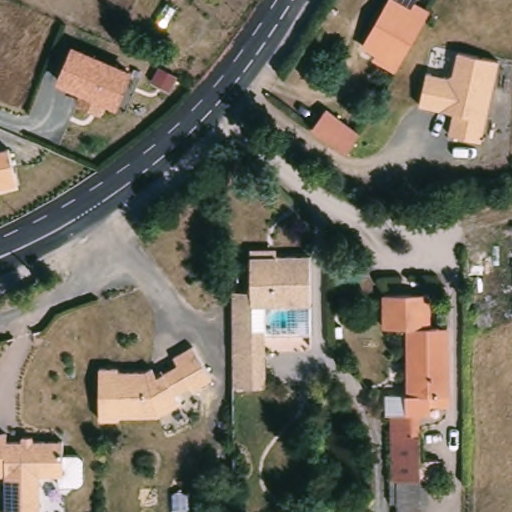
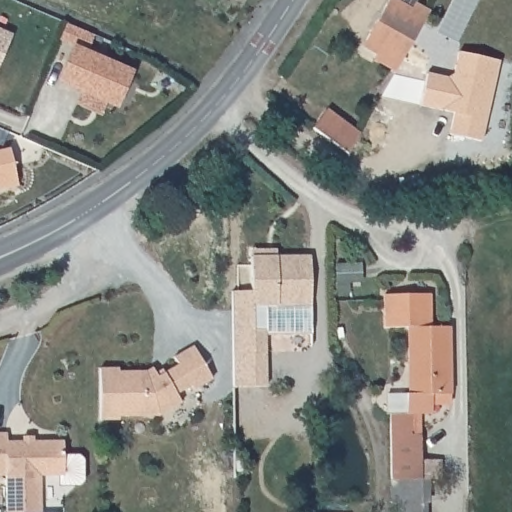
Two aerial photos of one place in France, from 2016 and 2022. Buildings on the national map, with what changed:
unchanged [(381,20),(391,0),(420,0),(418,5),(432,12),(413,45),(388,30),(391,26),(381,20)]
unchanged [(391,26),(388,30),(413,45),(398,72),(377,60),(380,55),(366,46),(381,20),(391,26)]
new [(13,35),(0,63),(0,29),(13,35)]
unchanged [(75,104),(80,94),(54,83),(73,43),(134,71),(116,110),(106,106),(100,115),(75,104)]
unchanged [(446,135),(451,113),(418,106),(425,74),(445,79),(451,75),(456,53),(496,62),(478,142),(446,135)]
unchanged [(311,129),(325,110),(358,134),(346,155),(311,129)]
unchanged [(12,147),(18,187),(0,191),(0,150),(12,147)]
unchanged [(232,329),(232,290),(233,290),(252,291),(252,256),(253,256),(253,249),(277,250),(277,257),(298,257),(312,257),(311,307),(297,307),(253,305),(252,330),(264,330),(263,352),(231,352),(232,329)]
unchanged [(405,412),(403,393),(408,392),(405,326),(386,327),(382,327),(381,295),(386,295),(426,293),(427,325),(446,323),(448,394),(430,396),(431,412),(405,412)]
unchanged [(194,386),(191,382),(177,392),(183,400),(157,416),(117,415),(117,371),(146,371),(152,367),(158,376),(178,362),(173,355),(191,342),(212,374),(194,386)]
unchanged [(231,386),(231,352),(263,352),(263,387),(231,386)]
unchanged [(63,475),(39,475),(39,512),(5,512),(5,474),(0,474),(0,432),(6,432),(6,440),(22,440),(22,435),(32,435),(32,440),(62,441),(63,475)]
unchanged [(433,481),(414,480),(414,482),(384,482),(384,437),(414,437),(414,464),(433,465),(433,481)]

